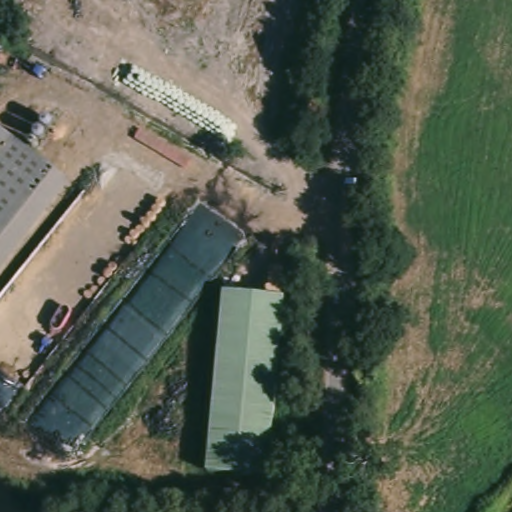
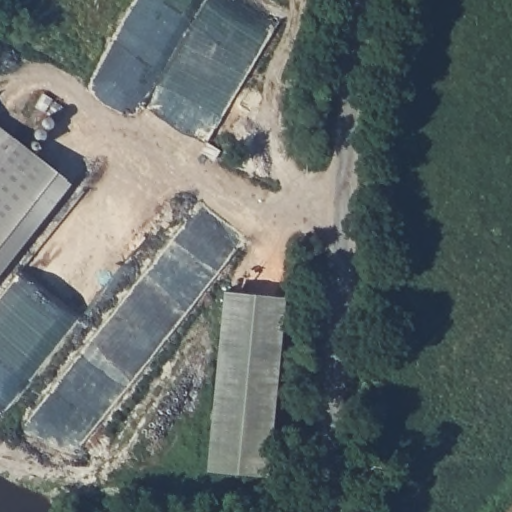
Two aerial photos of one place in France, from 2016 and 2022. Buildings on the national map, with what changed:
unchanged [(11,136),(0,150),(0,128),(11,136)]
unchanged [(0,278),(0,154),(13,137),(74,184),(0,278)]
unchanged [(283,292),(265,471),(204,465),(222,286),(283,292)]

